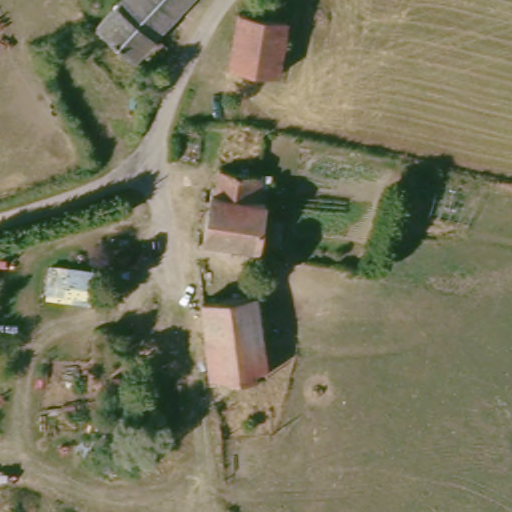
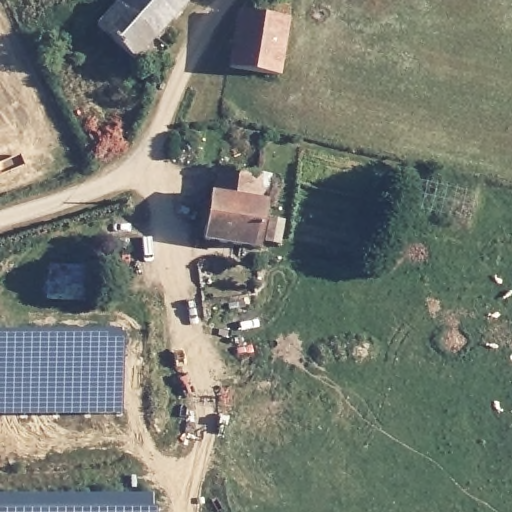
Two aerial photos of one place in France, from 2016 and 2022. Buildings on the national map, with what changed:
unchanged [(140,61),(93,23),(113,0),(191,0),(140,61)]
unchanged [(230,19),(245,21),(249,4),(285,10),(273,79),(220,70),(230,19)]
unchanged [(265,210),(258,246),(202,236),(208,198),(213,199),(217,173),(260,181),(256,207),(265,210)]
unchanged [(95,310),(37,300),(42,260),(98,268),(95,310)]
demolished [(253,301),(259,377),(208,381),(203,303),(253,301)]
new [(0,332),(118,331),(122,336),(120,415),(0,415),(0,332)]
new [(151,495),(153,510),(154,512),(0,512),(0,495),(151,495)]

